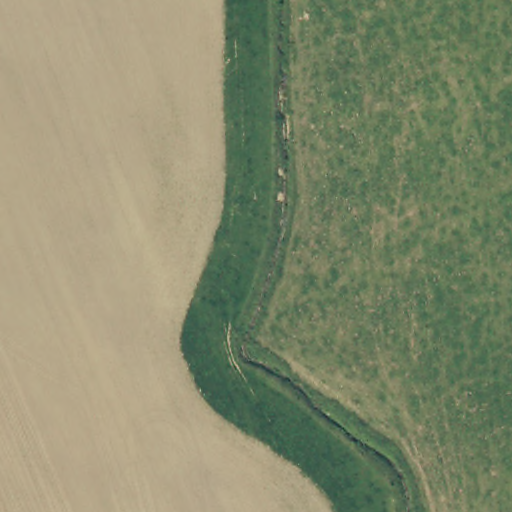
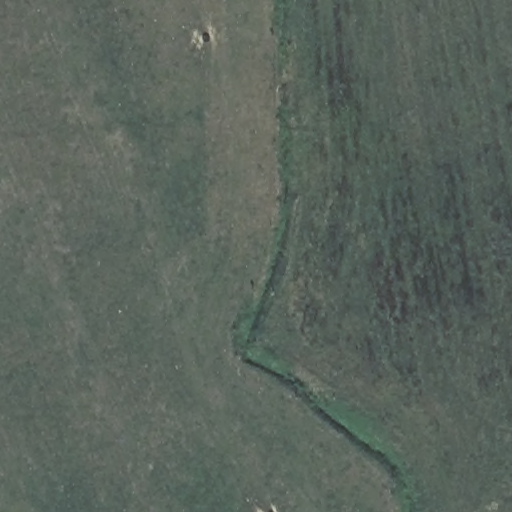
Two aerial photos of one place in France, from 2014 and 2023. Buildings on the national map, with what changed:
[]

